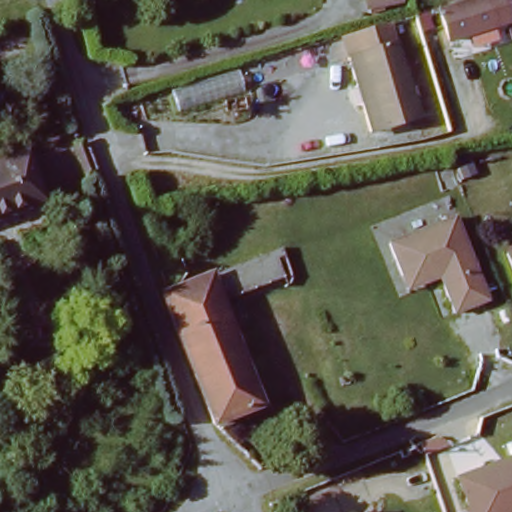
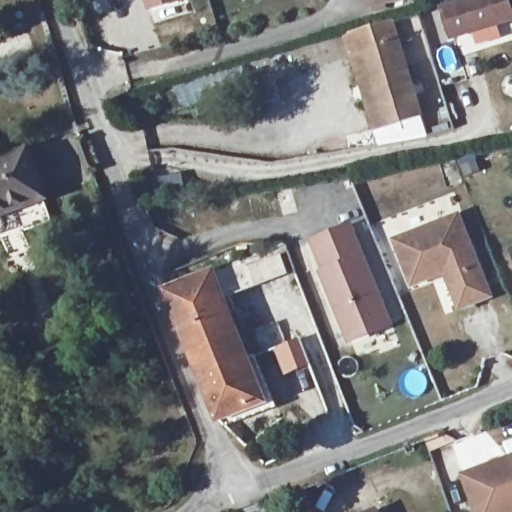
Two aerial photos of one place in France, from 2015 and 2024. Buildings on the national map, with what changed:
new [(143,0),(185,0),(147,11),(143,0)]
unchanged [(368,0),(386,0),(369,5),(368,0)]
unchanged [(445,0),(510,0),(512,6),(512,18),(449,39),(439,2),(445,0)]
unchanged [(425,116),(389,127),(378,89),(345,100),(332,62),(402,43),(425,116)]
unchanged [(46,181),(0,197),(0,145),(29,135),(46,181)]
unchanged [(55,205),(0,226),(0,197),(46,181),(55,205)]
unchanged [(408,277),(395,244),(461,219),(492,302),(460,314),(445,275),(412,287),(408,277)]
new [(319,272),(324,269),(312,240),(354,223),(396,325),(349,343),(319,272)]
unchanged [(213,272),(281,245),(286,266),(221,292),(213,272)]
unchanged [(261,397),(218,415),(173,304),(168,290),(213,272),(221,292),(261,397)]
unchanged [(462,479),(512,460),(512,512),(477,512),(462,479)]

